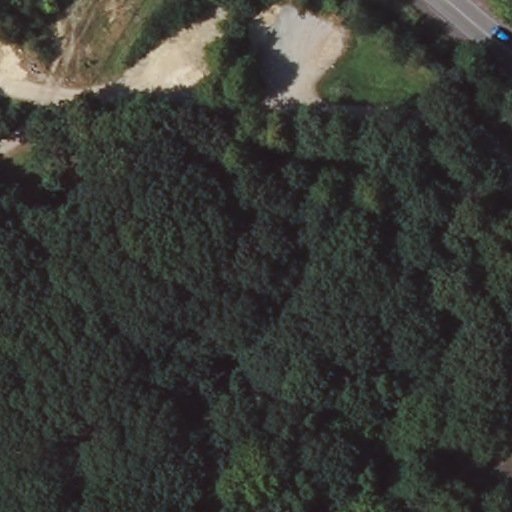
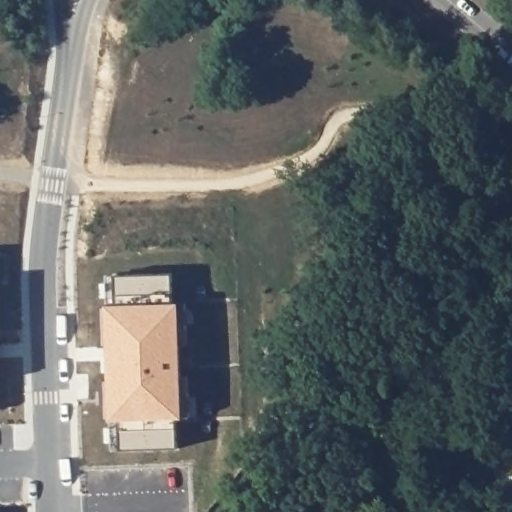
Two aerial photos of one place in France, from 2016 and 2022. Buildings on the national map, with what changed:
new [(171,275),(172,305),(178,305),(181,417),(174,418),(174,450),(120,450),(119,421),(110,421),(108,308),(115,308),(115,275),(171,275)]
unchanged [(460,422),(466,434),(456,439),(450,428),(460,422)]

